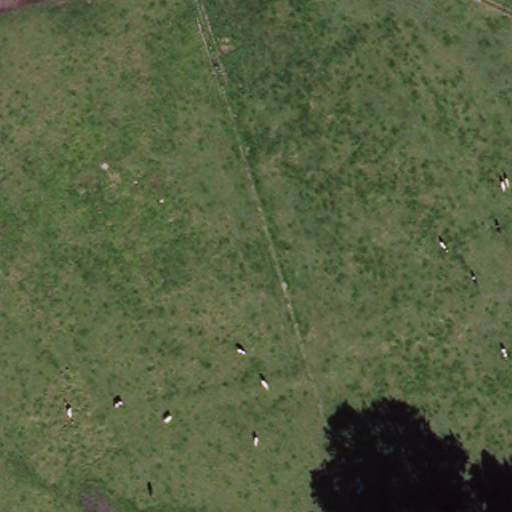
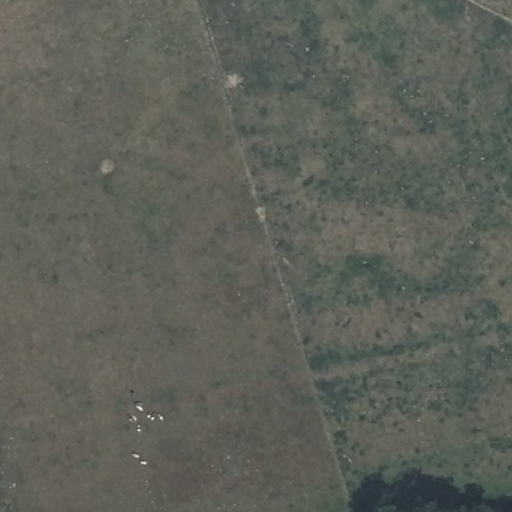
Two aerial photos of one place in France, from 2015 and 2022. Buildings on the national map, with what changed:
[]

